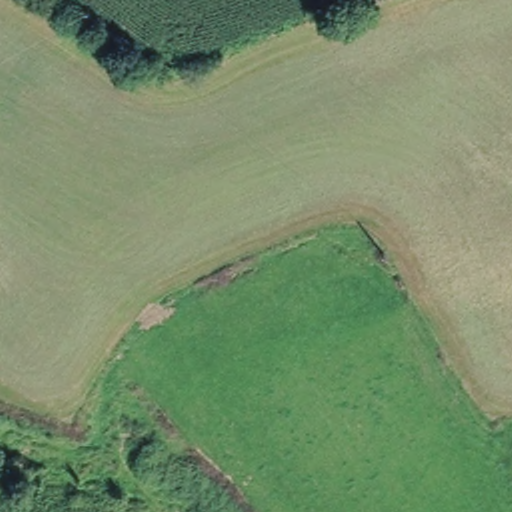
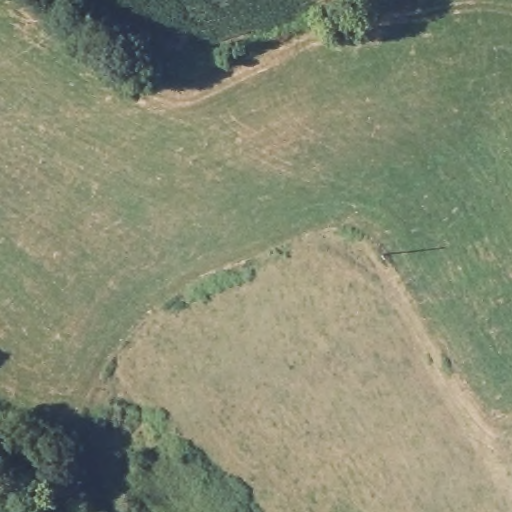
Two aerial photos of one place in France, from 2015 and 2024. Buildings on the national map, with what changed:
[]

